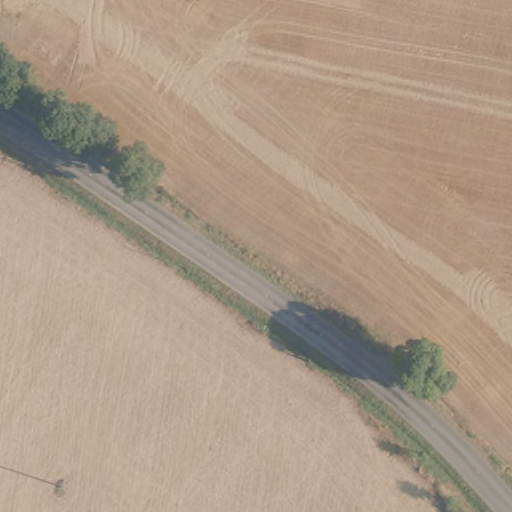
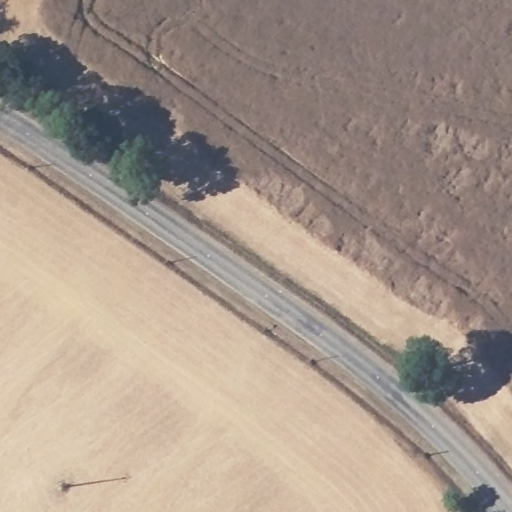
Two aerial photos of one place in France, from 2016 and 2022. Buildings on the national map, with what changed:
[]

